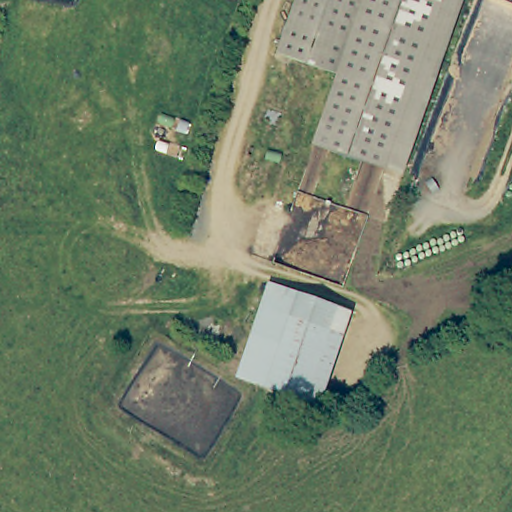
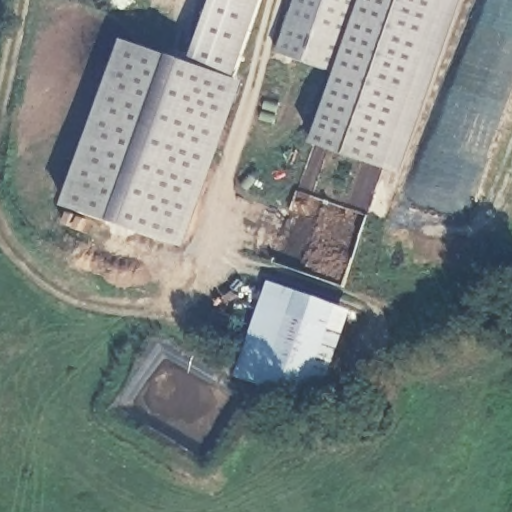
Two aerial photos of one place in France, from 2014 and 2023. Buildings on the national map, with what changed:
new [(191,64),(214,0),(261,0),(236,79),(244,81),(188,247),(66,207),(123,40),(191,64)]
unchanged [(299,0),(366,0),(343,78),(281,60),(299,0)]
unchanged [(321,149),(343,78),(366,0),(446,0),(394,169),(321,149)]
unchanged [(307,399),(238,380),(241,368),(268,282),(336,304),(317,367),(307,399)]

